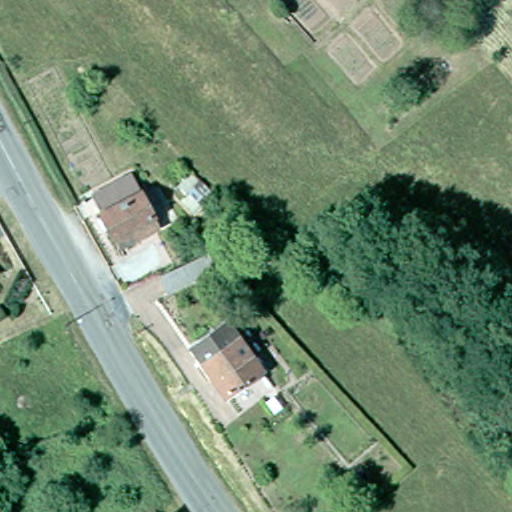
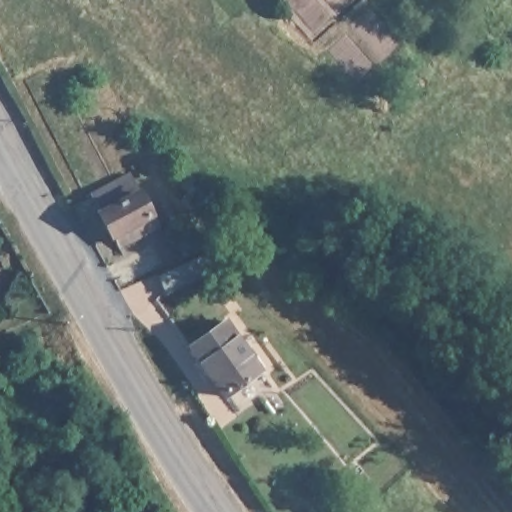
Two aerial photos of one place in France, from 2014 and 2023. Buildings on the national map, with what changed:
unchanged [(129,252),(126,247),(123,249),(120,243),(114,246),(104,223),(107,221),(98,203),(135,184),(144,203),(161,237),(129,252)]
unchanged [(154,271),(204,250),(212,268),(163,289),(154,271)]
unchanged [(0,275),(1,277),(0,277),(0,275)]
unchanged [(230,394),(206,359),(208,357),(197,343),(223,323),(234,338),(241,333),(266,368),(230,394)]

